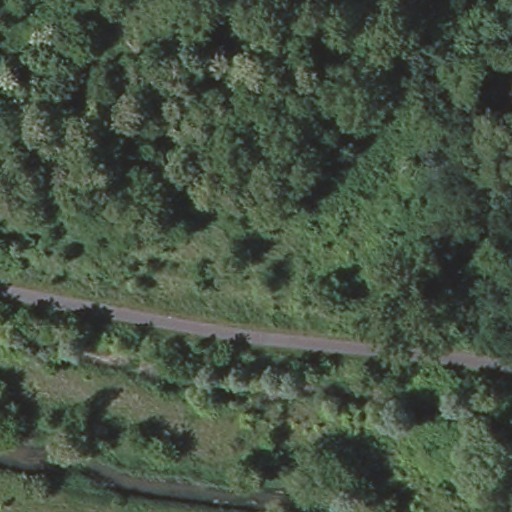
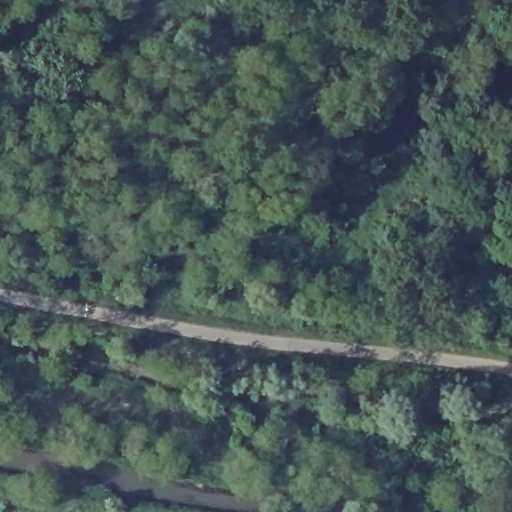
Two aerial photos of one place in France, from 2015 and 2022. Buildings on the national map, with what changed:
unchanged [(460,84),(435,86),(434,67),(432,31),(450,30),(452,66),(459,65),(460,84)]
unchanged [(499,51),(512,52),(512,73),(497,72),(499,51)]

